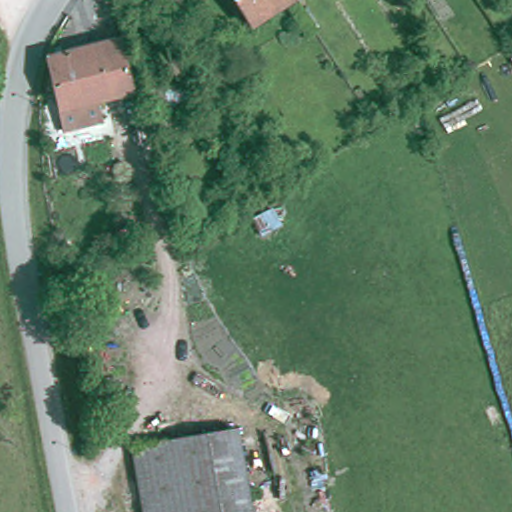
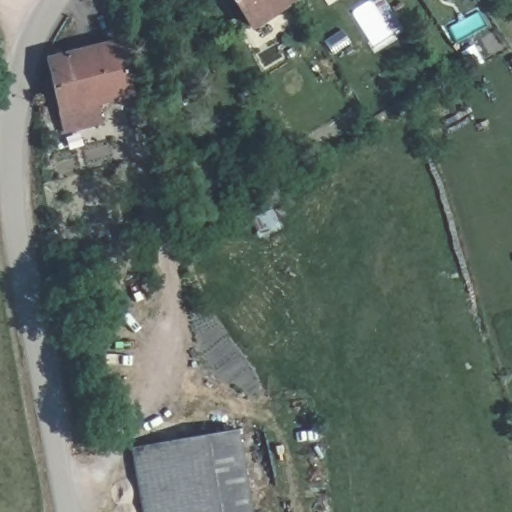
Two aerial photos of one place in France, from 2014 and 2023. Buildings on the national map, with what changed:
unchanged [(252,26),(235,0),(295,0),(297,3),(290,8),(287,3),(252,26)]
unchanged [(112,126),(106,101),(82,107),(85,115),(61,120),(47,61),(47,60),(119,42),(132,94),(137,119),(112,126)]
unchanged [(144,84),(182,68),(194,97),(157,114),(144,84)]
unchanged [(161,124),(174,119),(181,136),(167,142),(161,124)]
unchanged [(120,246),(116,232),(132,228),(136,241),(120,246)]
unchanged [(236,429),(250,512),(141,512),(130,445),(236,429)]

